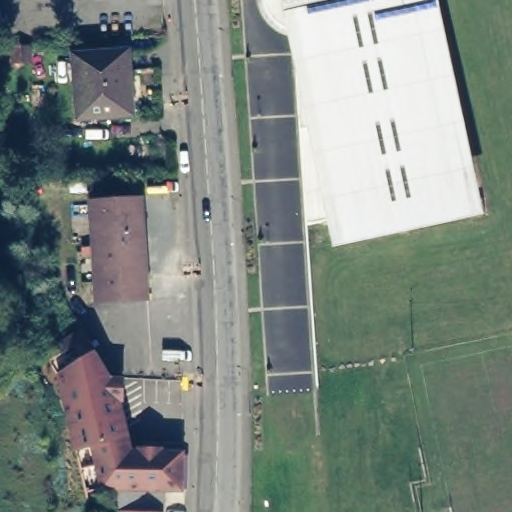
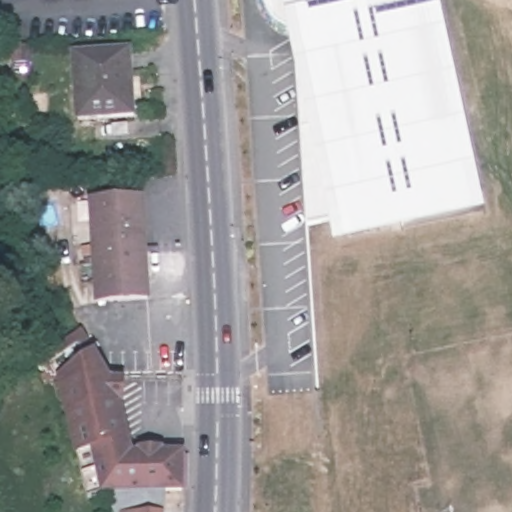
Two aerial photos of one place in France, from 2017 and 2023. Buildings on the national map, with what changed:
unchanged [(493,219),(409,238),(407,228),(354,238),(351,224),(313,230),(300,42),(295,41),(289,39),(284,37),(279,33),(276,29),(271,24),(269,20),(266,16),(266,15),(264,10),(264,5),(264,0),(429,0),(476,213),(491,210),(493,219)]
unchanged [(13,43),(0,44),(0,27),(11,27),(13,43)]
unchanged [(30,48),(32,63),(17,64),(16,50),(30,48)]
unchanged [(133,84),(127,85),(127,92),(134,92),(135,113),(80,115),(76,53),(131,49),(133,84)]
unchanged [(151,299),(102,301),(98,202),(146,200),(151,299)]
unchanged [(100,443),(110,488),(100,490),(92,447),(73,451),(55,372),(77,361),(69,349),(58,355),(53,343),(83,325),(111,379),(124,380),(123,405),(128,436),(100,443)]
unchanged [(128,436),(132,452),(136,451),(189,452),(189,488),(171,488),(121,488),(120,488),(110,488),(100,443),(128,436)]
unchanged [(171,488),(170,512),(126,512),(119,512),(120,488),(121,488),(171,488)]

